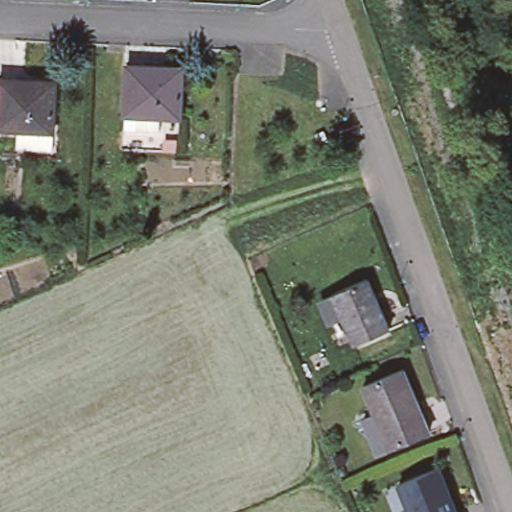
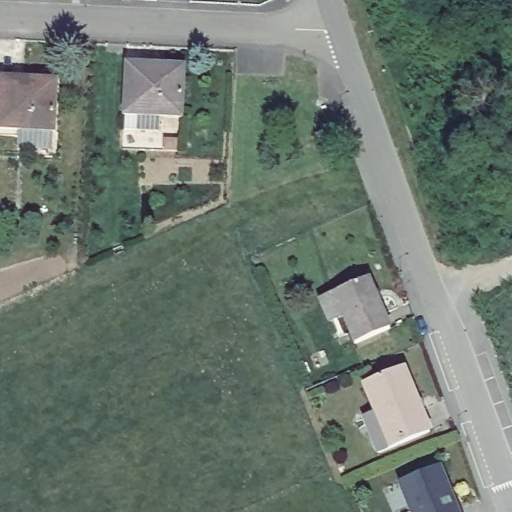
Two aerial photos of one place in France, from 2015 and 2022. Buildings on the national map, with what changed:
unchanged [(116,112),(120,62),(178,66),(175,116),(116,112)]
unchanged [(19,129),(0,128),(0,79),(0,73),(57,76),(54,130),(53,147),(18,146),(19,129)]
unchanged [(328,290),(364,275),(386,326),(350,341),(328,290)]
unchanged [(365,415),(377,410),(365,382),(405,365),(422,407),(418,408),(427,430),(391,445),(380,450),(365,415)]
unchanged [(431,464),(447,506),(444,507),(446,512),(404,512),(390,480),(431,464)]

